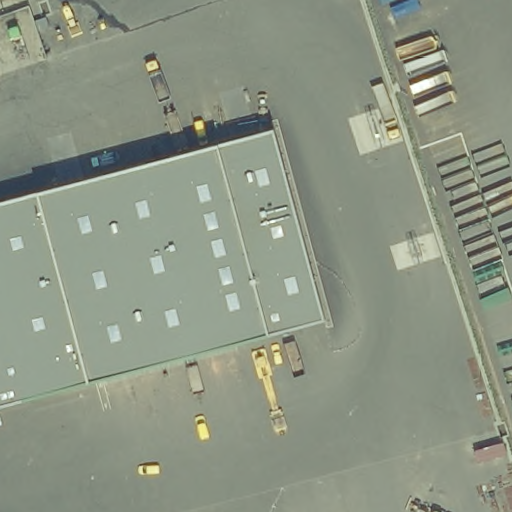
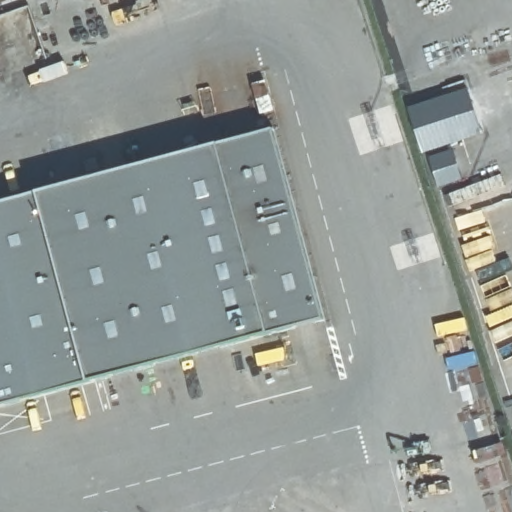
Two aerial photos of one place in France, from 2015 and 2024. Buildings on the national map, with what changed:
new [(485,134),(424,151),(410,108),(470,88),(485,134)]
unchanged [(274,129),(325,320),(0,407),(0,202),(274,129)]

